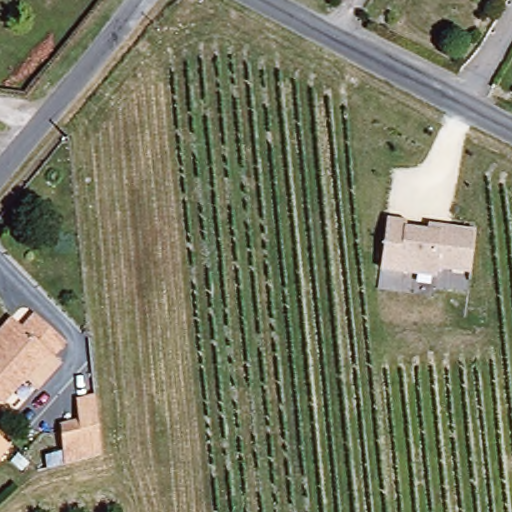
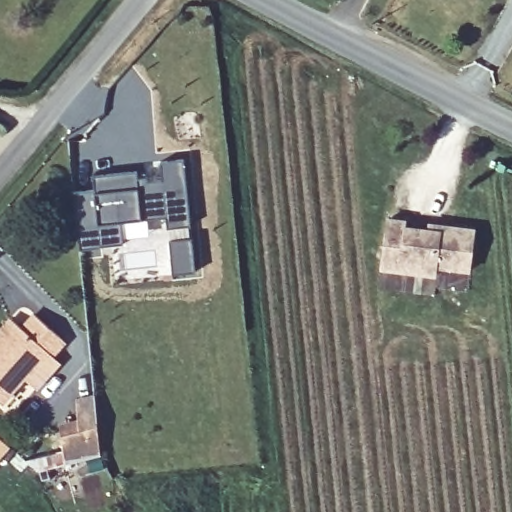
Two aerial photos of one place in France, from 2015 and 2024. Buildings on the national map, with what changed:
new [(189,227),(165,230),(164,219),(119,224),(122,246),(82,251),(75,193),(96,191),(94,177),(138,172),(139,179),(148,178),(149,182),(164,180),(161,162),(180,160),(189,227)]
unchanged [(387,254),(391,218),(410,221),(410,226),(432,229),(433,223),(445,225),(479,230),(475,270),(441,265),(440,274),(418,271),(385,267),(387,254)]
new [(195,272),(171,276),(167,242),(190,238),(195,272)]
unchanged [(35,312),(66,338),(54,354),(46,349),(1,403),(0,401),(0,322),(7,314),(16,322),(22,327),(35,312)]
unchanged [(105,454),(65,463),(61,431),(80,426),(79,399),(97,396),(105,454)]
unchanged [(6,440),(14,447),(0,463),(0,435),(6,440)]

